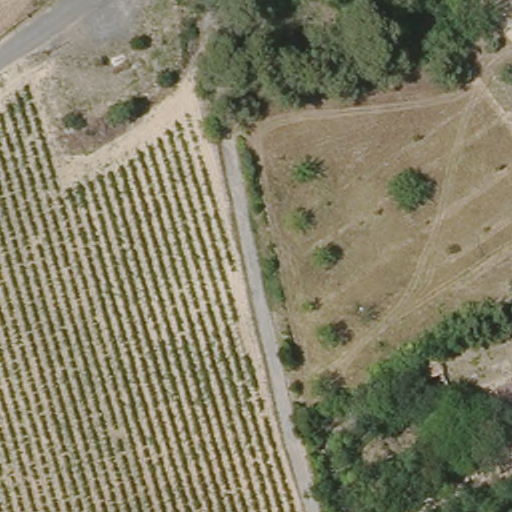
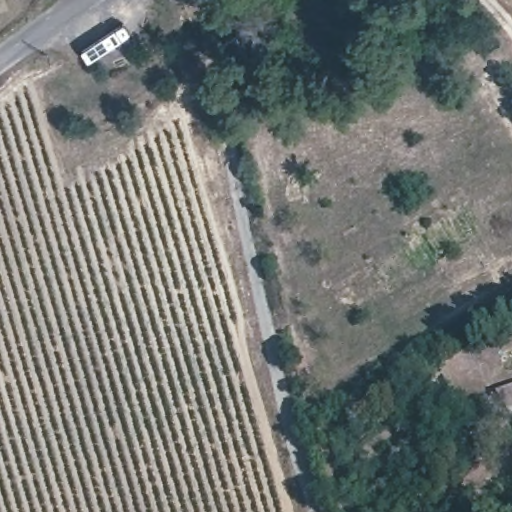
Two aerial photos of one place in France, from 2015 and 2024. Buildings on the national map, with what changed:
unchanged [(509,400),(512,398),(512,406),(509,400)]

